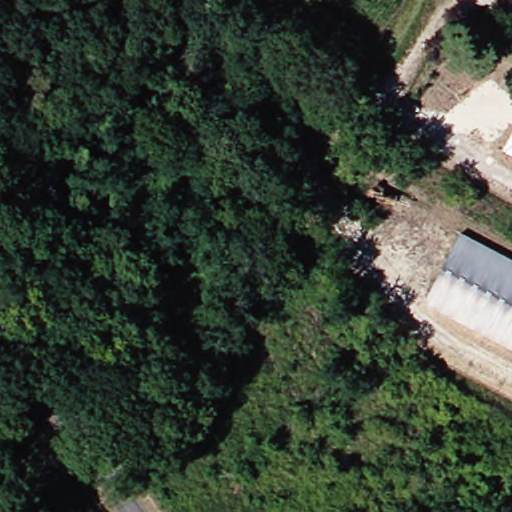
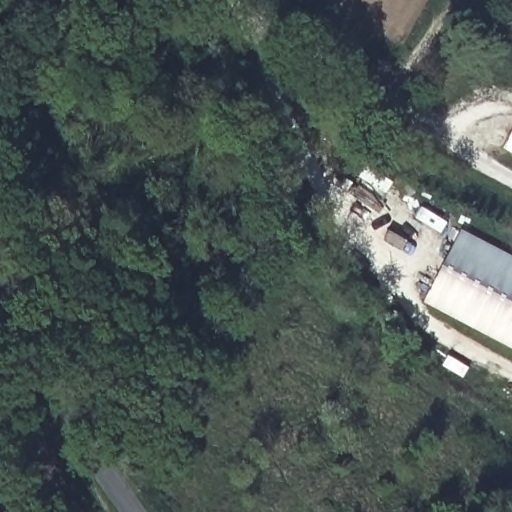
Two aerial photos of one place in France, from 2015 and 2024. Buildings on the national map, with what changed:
unchanged [(435,294),(473,226),(512,248),(512,338),(435,294)]

